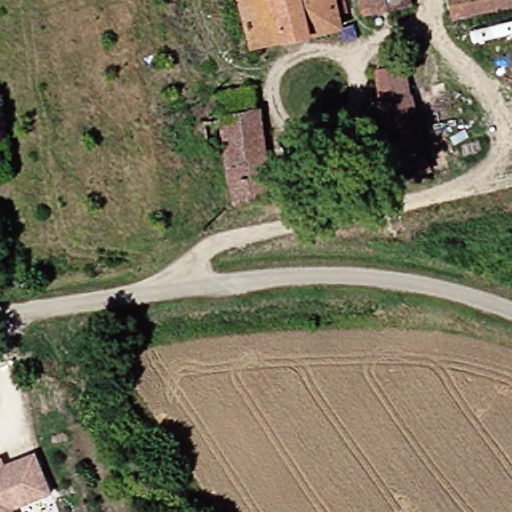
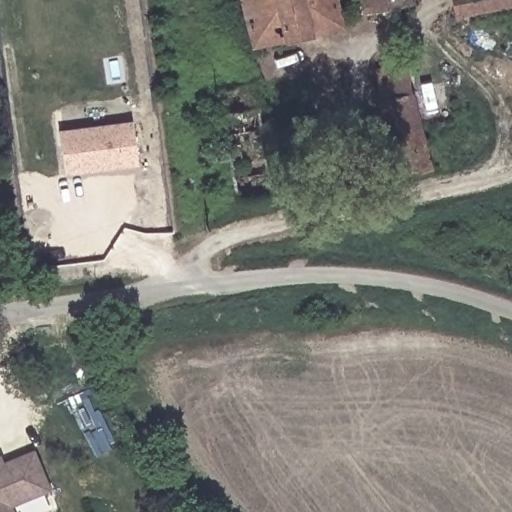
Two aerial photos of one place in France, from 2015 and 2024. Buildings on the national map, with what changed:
unchanged [(251,47),(243,0),(346,0),(348,10),(340,13),(341,25),(251,47)]
unchanged [(412,7),(365,20),(362,0),(411,0),(412,7)]
unchanged [(457,20),(457,0),(512,0),(512,12),(457,20)]
unchanged [(410,60),(431,167),(399,176),(375,69),(410,60)]
unchanged [(256,85),(271,193),(237,199),(229,142),(210,145),(207,114),(226,111),(224,90),(256,85)]
new [(138,168),(65,177),(59,131),(131,122),(138,168)]
demolished [(222,208),(230,206),(231,214),(224,215),(222,208)]
unchanged [(22,512),(0,512),(0,468),(39,451),(59,495),(22,512)]

